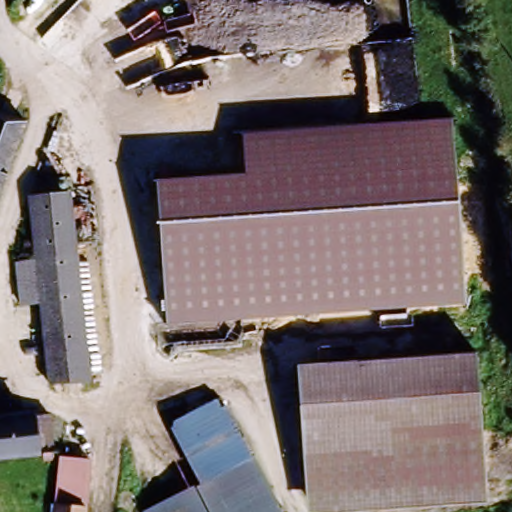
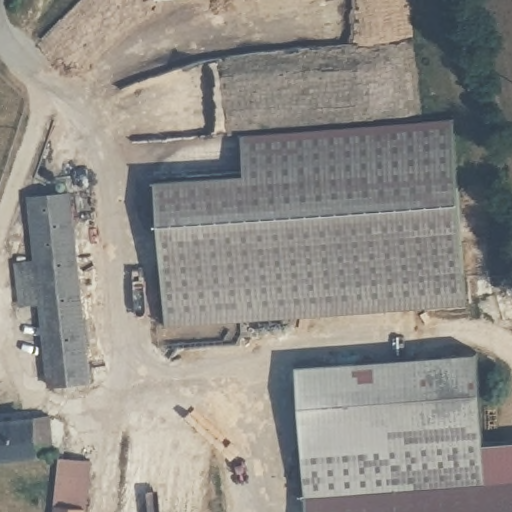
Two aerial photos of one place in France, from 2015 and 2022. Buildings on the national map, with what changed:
unchanged [(17,122),(0,170),(0,117),(17,122)]
unchanged [(451,121),(470,305),(351,316),(174,331),(158,185),(245,177),(241,140),(451,121)]
unchanged [(32,196),(71,191),(78,257),(38,261),(32,196)]
unchanged [(38,261),(78,257),(91,378),(53,382),(45,300),(27,301),(23,263),(38,261)]
unchanged [(412,355),(481,354),(491,503),(342,512),(308,512),(298,366),(324,364),(412,355)]
demolished [(284,512),(151,512),(149,508),(211,478),(182,416),(219,399),(247,456),(248,461),(257,457),(284,512)]
unchanged [(38,417),(41,432),(45,453),(0,458),(0,421),(38,417)]
new [(487,444),(512,442),(512,512),(342,512),(491,503),(487,444)]
unchanged [(60,507),(56,507),(58,475),(62,475),(89,477),(86,510),(86,512),(60,512),(60,507)]

